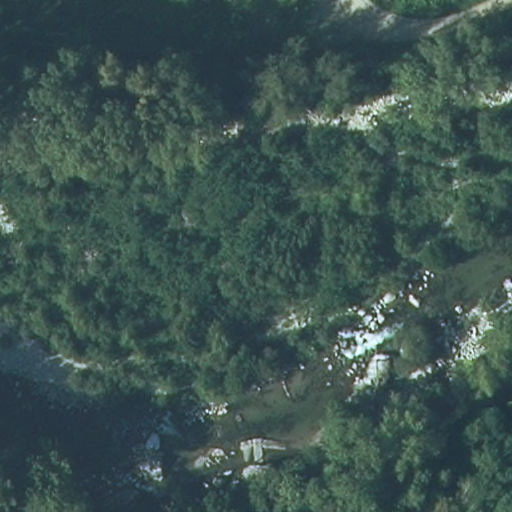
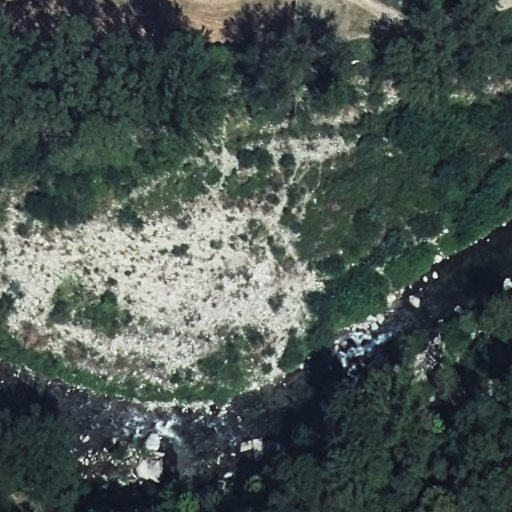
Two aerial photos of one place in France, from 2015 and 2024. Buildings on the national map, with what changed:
[]

